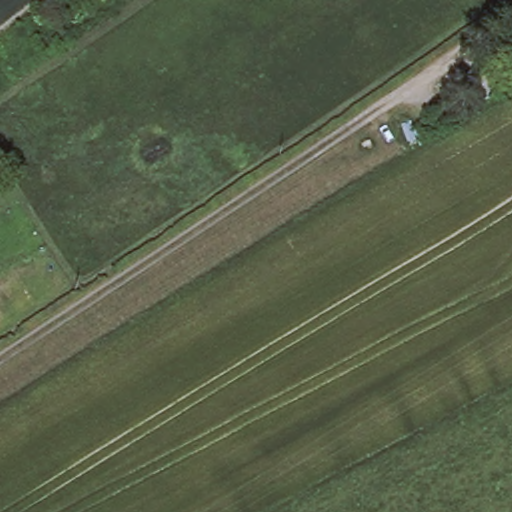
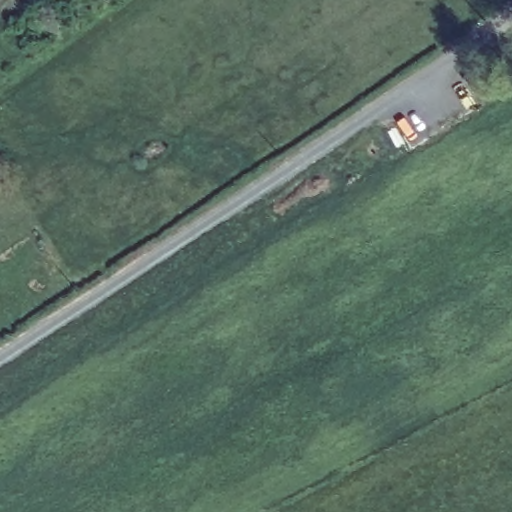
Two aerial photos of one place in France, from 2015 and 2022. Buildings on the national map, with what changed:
unchanged [(443,78),(472,55),(485,72),(456,95),(443,78)]

